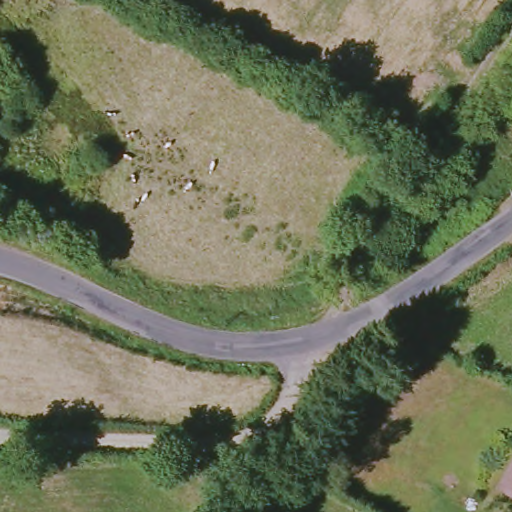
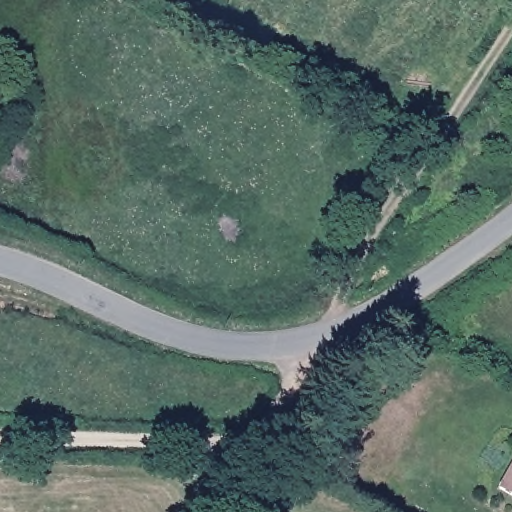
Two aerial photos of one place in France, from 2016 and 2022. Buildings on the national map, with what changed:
unchanged [(512,497),(497,489),(512,461),(512,497)]

